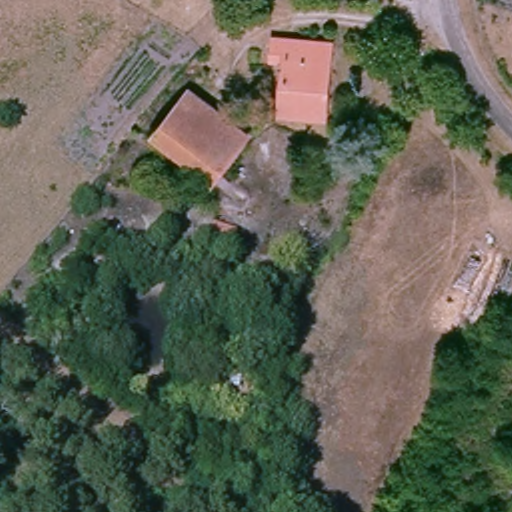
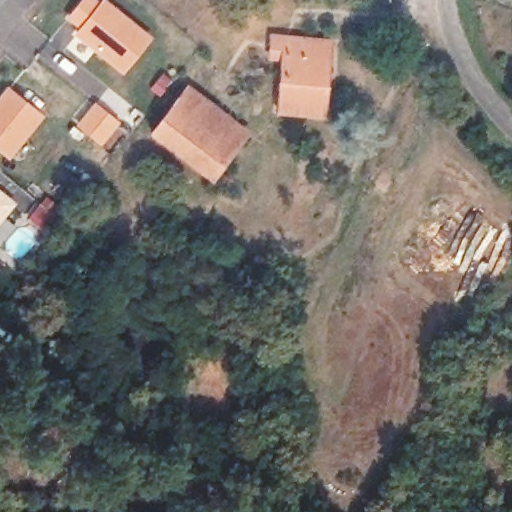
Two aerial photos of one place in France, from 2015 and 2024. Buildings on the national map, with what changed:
new [(68,18),(82,0),(97,0),(102,4),(104,0),(105,0),(152,38),(124,74),(75,36),(80,30),(68,18)]
unchanged [(313,113),(271,107),(281,36),(323,44),(313,113)]
unchanged [(243,133),(227,156),(166,111),(184,88),(243,133)]
new [(0,152),(0,99),(9,89),(46,116),(11,161),(0,152)]
unchanged [(209,181),(148,136),(166,111),(227,156),(209,181)]
new [(17,204),(0,223),(0,191),(17,204)]
unchanged [(310,260),(290,303),(269,294),(289,252),(310,260)]
unchanged [(206,272),(227,278),(224,292),(204,287),(206,272)]

